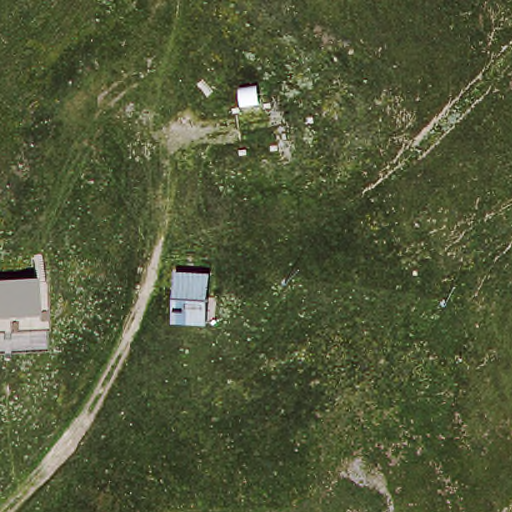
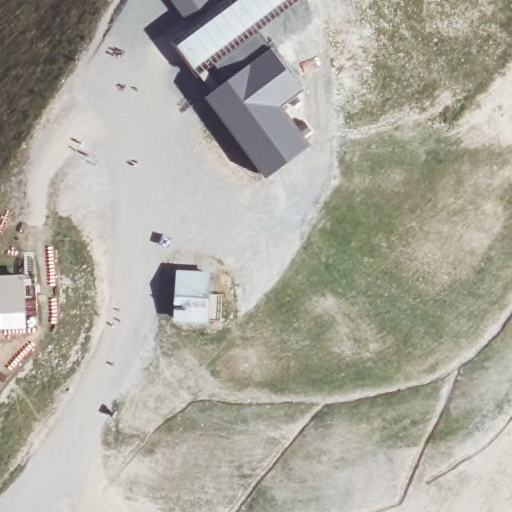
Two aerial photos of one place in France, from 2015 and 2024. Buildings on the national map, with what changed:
new [(293,2),(183,88),(150,46),(208,0),(291,0),(293,2)]
new [(271,47),(304,89),(282,106),(312,144),(266,178),(205,97),(271,47)]
demolished [(277,99),(277,145),(242,146),(238,103),(277,99)]
unchanged [(207,274),(207,325),(177,324),(176,272),(207,274)]
unchanged [(33,276),(35,309),(40,345),(0,347),(0,277),(33,276)]

